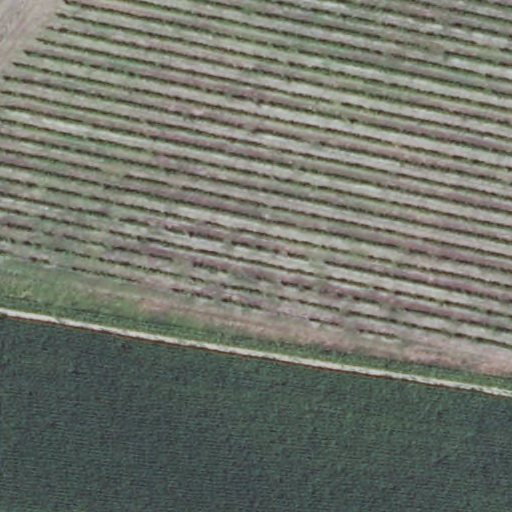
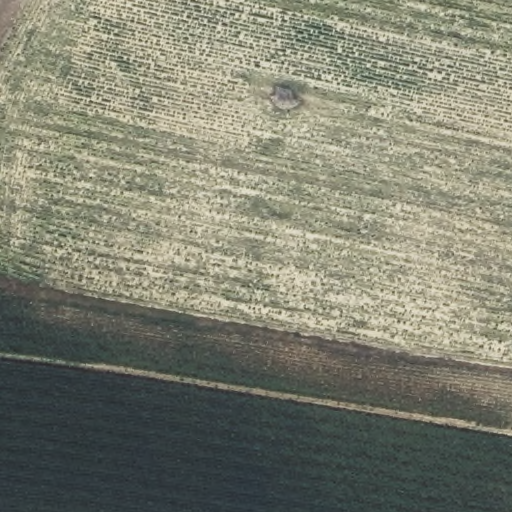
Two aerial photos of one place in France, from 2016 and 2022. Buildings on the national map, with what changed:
[]

